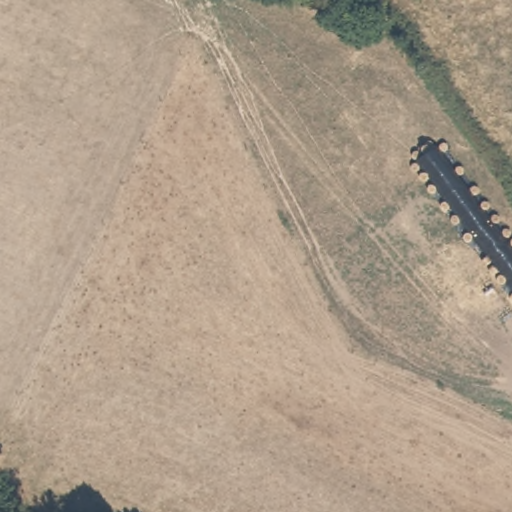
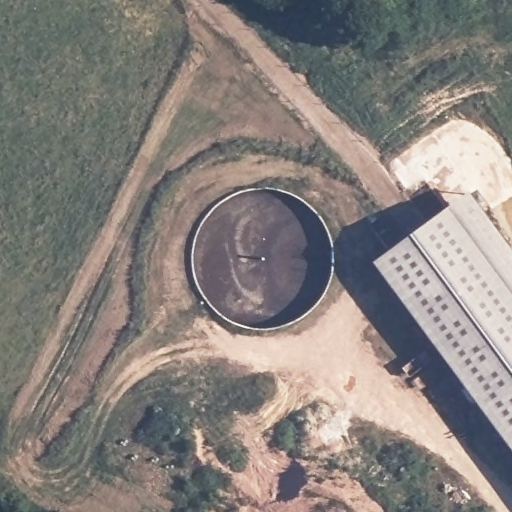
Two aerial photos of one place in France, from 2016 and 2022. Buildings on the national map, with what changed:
new [(372,262),(469,191),(512,249),(512,451),(372,262)]

